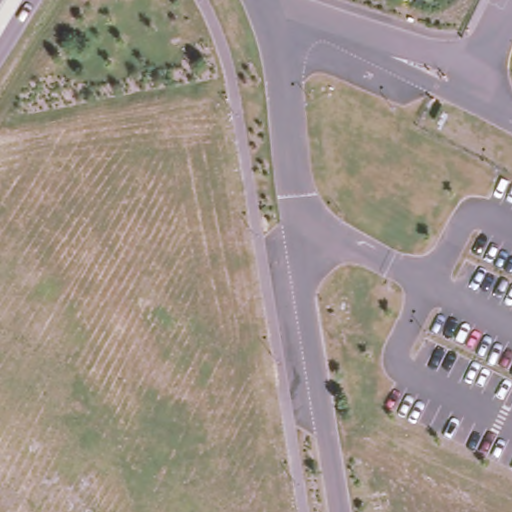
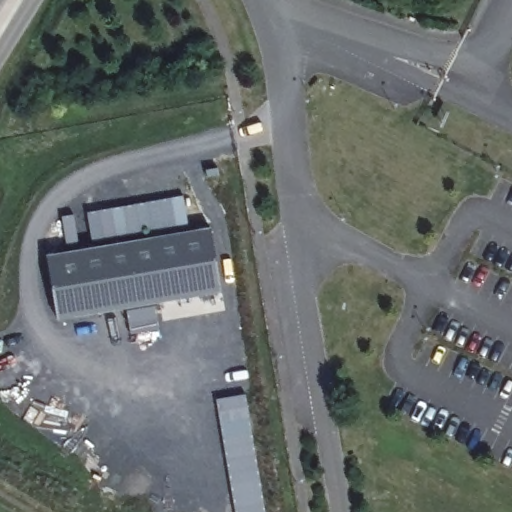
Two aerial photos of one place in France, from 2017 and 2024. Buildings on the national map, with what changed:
new [(189,231),(93,248),(86,212),(183,195),(189,231)]
new [(210,228),(221,291),(56,319),(45,256),(210,228)]

